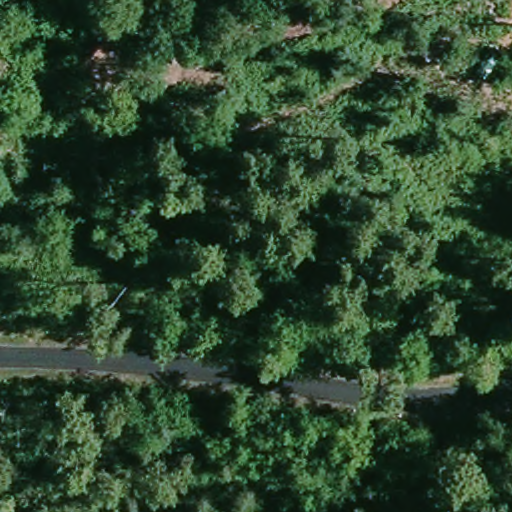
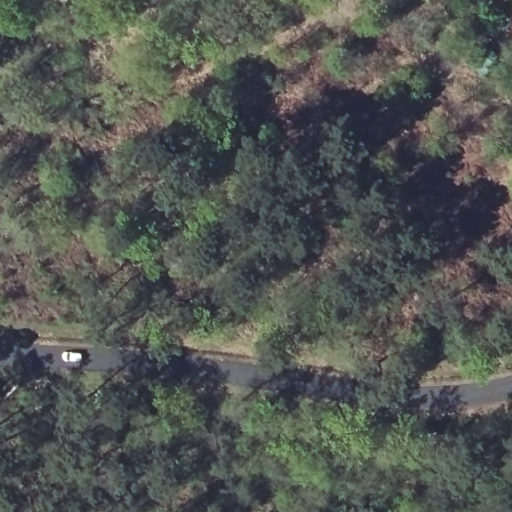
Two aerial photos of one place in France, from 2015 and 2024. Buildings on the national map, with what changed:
[]

